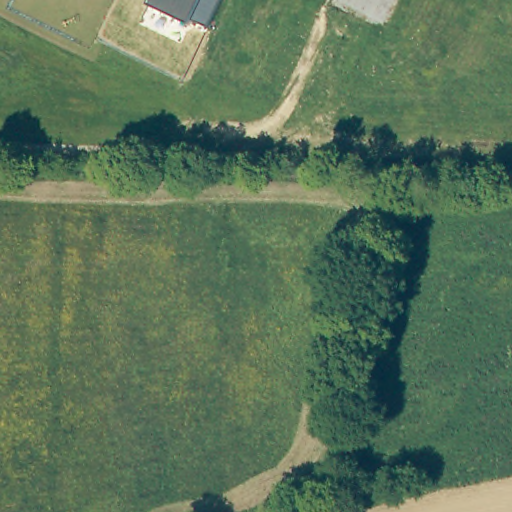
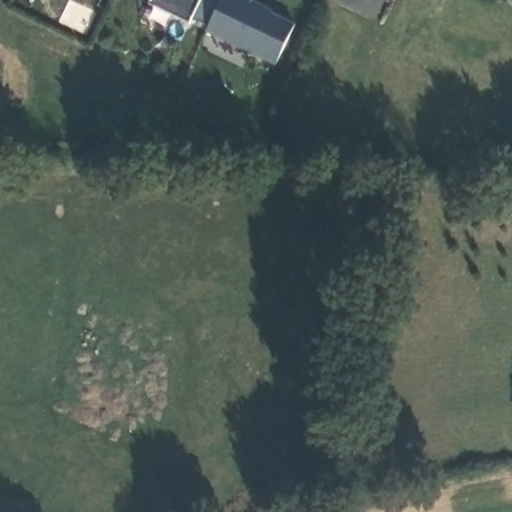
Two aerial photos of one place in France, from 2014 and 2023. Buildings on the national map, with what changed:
unchanged [(220,0),(207,26),(189,19),(187,23),(150,4),(152,0),(220,0)]
new [(270,12),(295,23),(276,64),(205,31),(207,26),(220,0),(252,0),(271,9),(270,12)]

